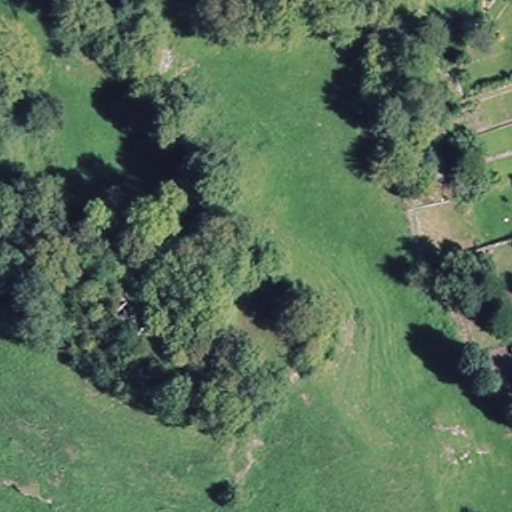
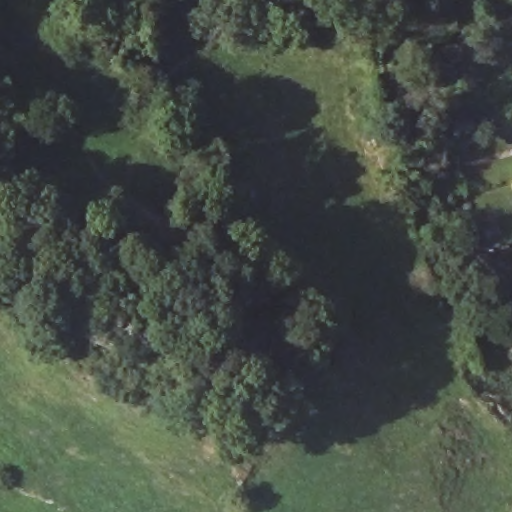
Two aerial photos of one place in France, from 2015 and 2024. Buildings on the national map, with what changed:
unchanged [(130,353),(108,329),(113,325),(110,319),(117,314),(142,343),(130,353)]

